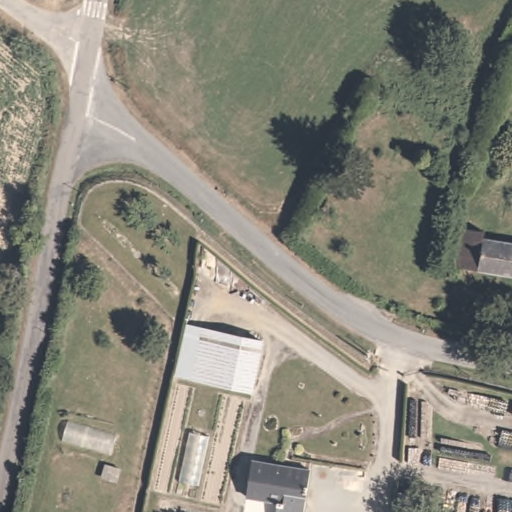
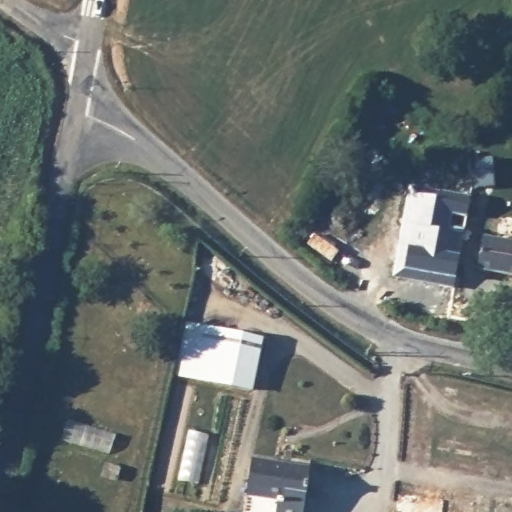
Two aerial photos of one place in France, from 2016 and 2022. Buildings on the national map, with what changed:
new [(409,246),(417,247),(421,228),(413,226),(418,195),(441,199),(443,193),(474,198),(457,290),(440,286),(443,277),(405,270),(409,246)]
unchanged [(477,227),(512,233),(512,272),(471,265),(477,227)]
unchanged [(194,334),(196,324),(256,333),(247,384),(200,376),(187,374),(194,334)]
unchanged [(307,462),(303,499),(250,492),(254,458),(307,462)]

